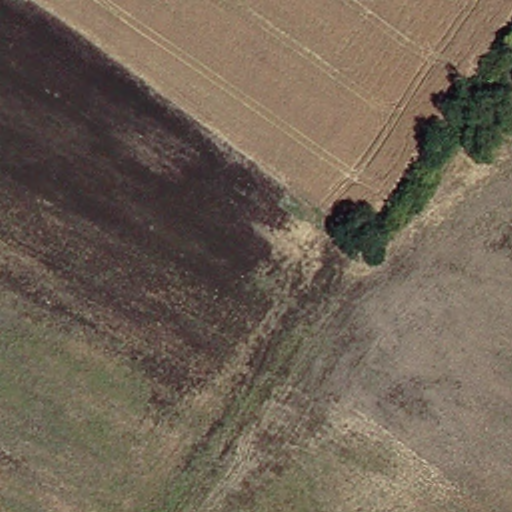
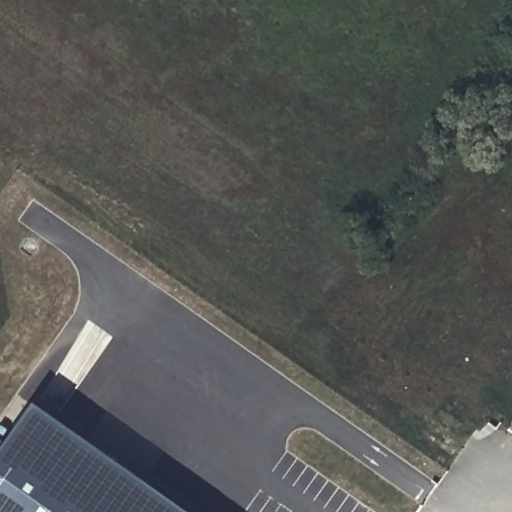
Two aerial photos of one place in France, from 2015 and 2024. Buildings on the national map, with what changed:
new [(0,433),(9,439),(37,399),(200,512),(0,512),(0,433)]

